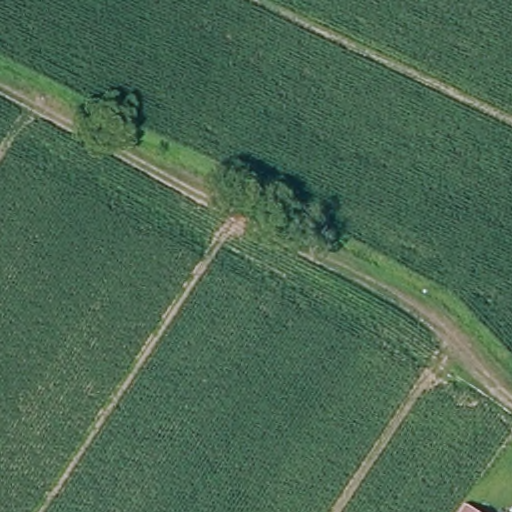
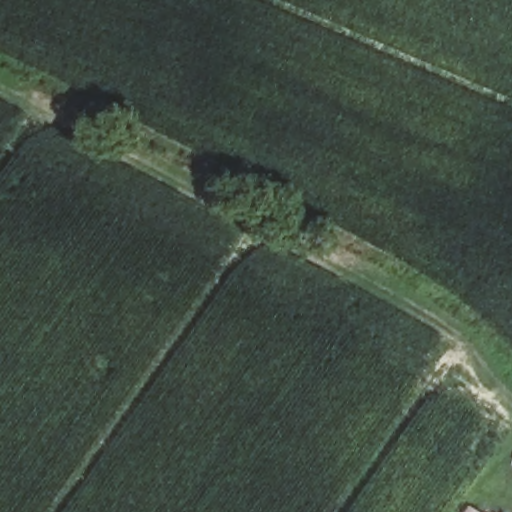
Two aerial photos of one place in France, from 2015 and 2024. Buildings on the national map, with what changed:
unchanged [(472,512),(462,512),(465,508),(472,512)]

